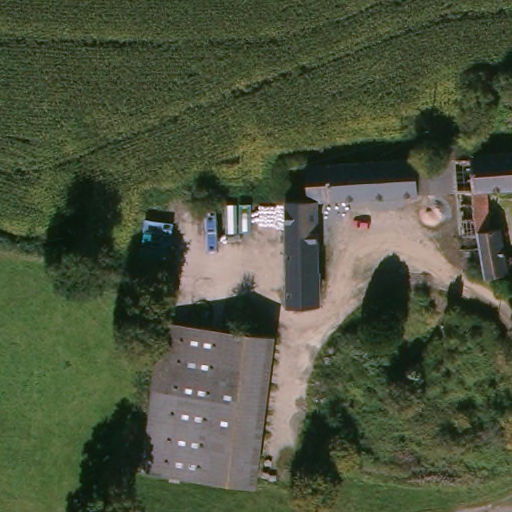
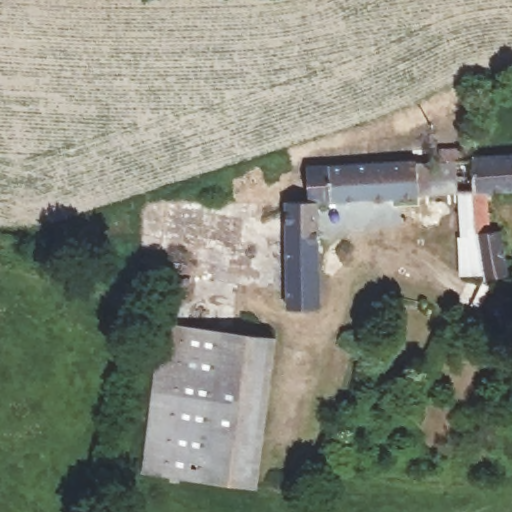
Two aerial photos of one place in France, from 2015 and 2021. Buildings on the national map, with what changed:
unchanged [(488,188),(491,227),(502,227),(506,277),(482,278),(477,228),(471,228),(467,187),(420,190),(303,198),(301,164),(412,157),(413,164),(435,162),(435,150),(465,148),(466,158),(472,159),(472,150),(512,148),(512,188),(488,188)]
unchanged [(286,273),(283,203),(315,202),(316,271),(317,306),(289,306),(287,287),(286,273)]
unchanged [(146,471),(160,323),(223,328),(208,475),(146,471)]
unchanged [(263,478),(208,475),(223,328),(278,332),(263,478)]

